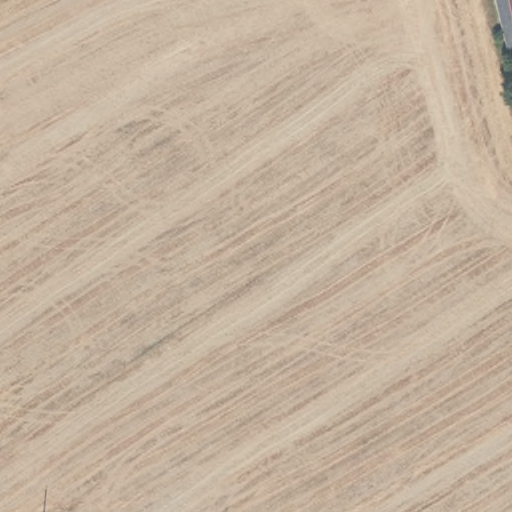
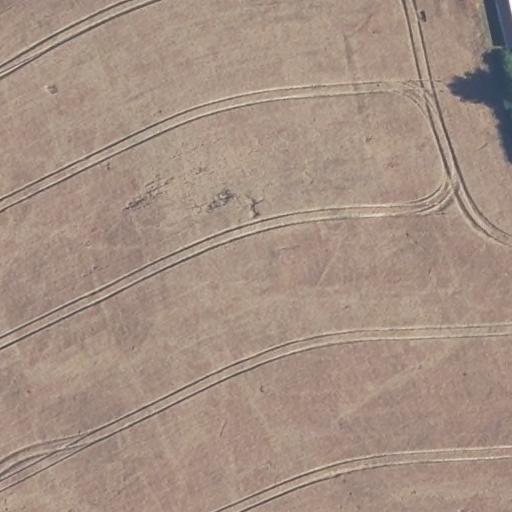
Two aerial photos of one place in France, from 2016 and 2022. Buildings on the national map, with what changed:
unchanged [(506,46),(496,0),(512,0),(512,44),(506,46)]

